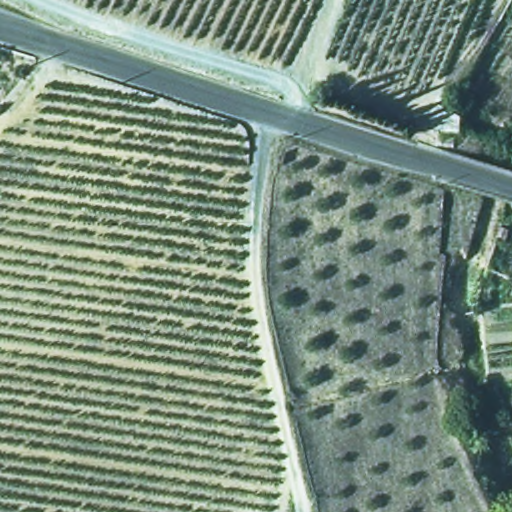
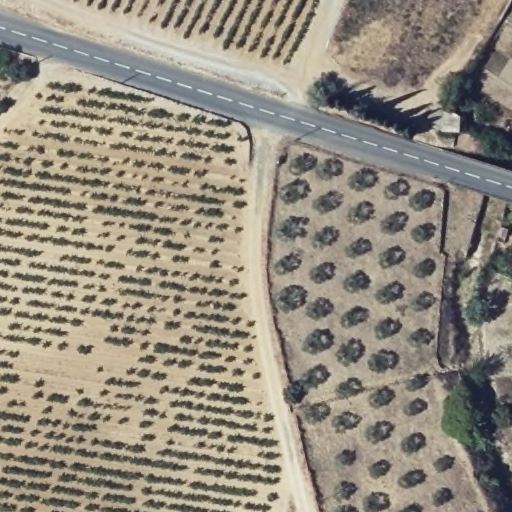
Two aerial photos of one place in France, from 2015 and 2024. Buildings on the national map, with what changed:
unchanged [(467,113),(458,133),(422,120),(430,101),(467,113)]

